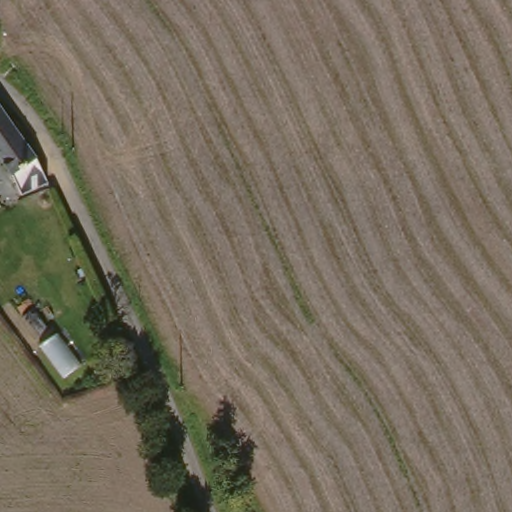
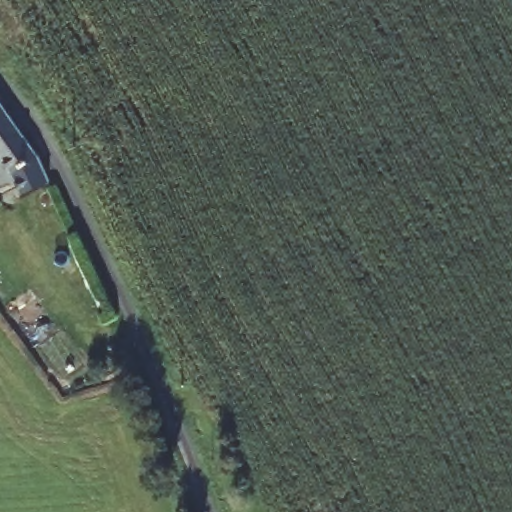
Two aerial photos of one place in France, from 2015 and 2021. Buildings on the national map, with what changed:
unchanged [(13,175),(0,159),(0,115),(32,159),(28,163),(13,175)]

